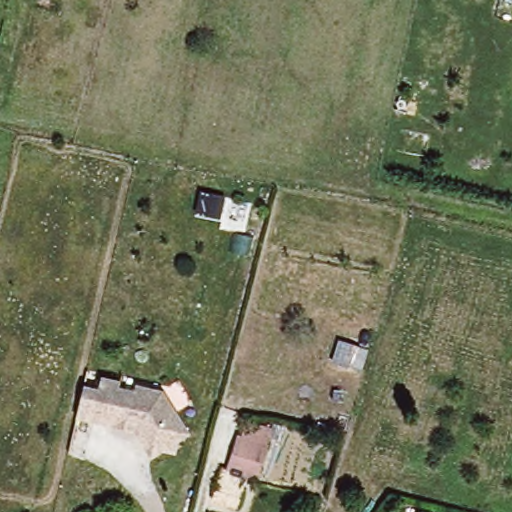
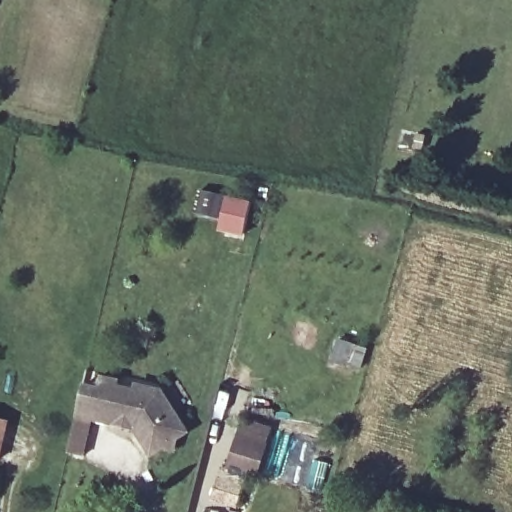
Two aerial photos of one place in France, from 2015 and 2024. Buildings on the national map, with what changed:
new [(245,236),(219,231),(222,218),(195,212),(200,190),(252,201),(245,236)]
unchanged [(338,340),(367,349),(362,371),(332,362),(338,340)]
unchanged [(74,416),(81,388),(96,391),(98,380),(117,383),(116,390),(134,393),(137,387),(146,390),(160,391),(185,433),(175,439),(172,452),(159,449),(149,456),(133,430),(114,425),(74,416)]
new [(7,422),(0,451),(0,420),(7,422)]
unchanged [(234,438),(263,444),(256,476),(245,473),(239,505),(212,498),(219,468),(226,468),(234,438)]

